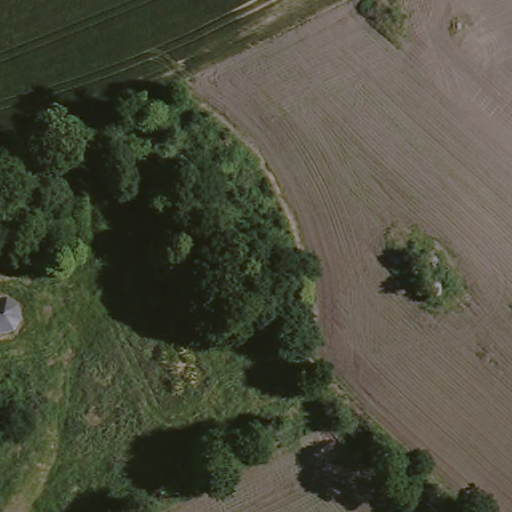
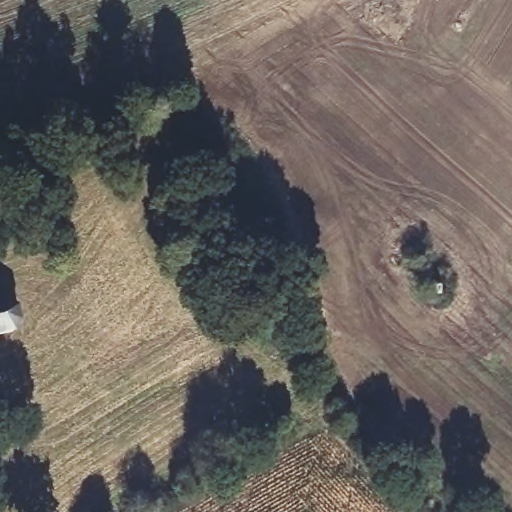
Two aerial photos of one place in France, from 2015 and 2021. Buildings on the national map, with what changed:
unchanged [(10,305),(15,308),(19,325),(15,332),(11,335),(6,338),(0,340),(0,305),(5,304),(10,305)]

